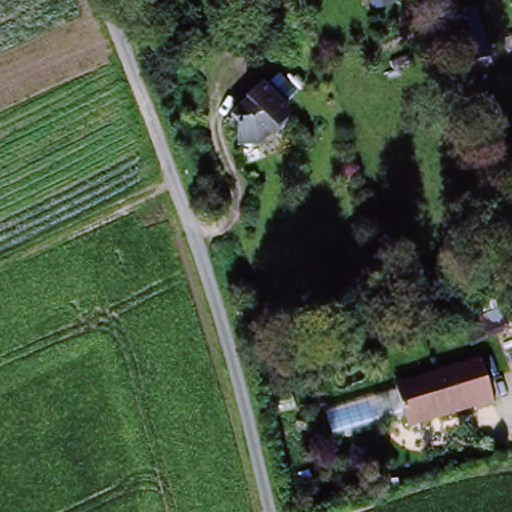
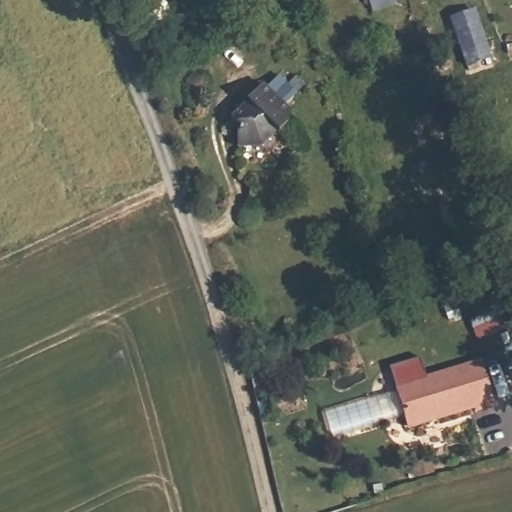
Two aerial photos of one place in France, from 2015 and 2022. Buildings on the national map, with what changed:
unchanged [(392,6),(370,14),(365,0),(390,0),(392,6)]
unchanged [(480,16),(497,62),(473,71),(456,24),(480,16)]
unchanged [(473,71),(444,82),(427,35),(456,24),(473,71)]
unchanged [(287,112),(284,126),(274,135),(270,135),(254,151),(235,148),(237,124),(230,118),(261,88),(287,112)]
unchanged [(482,362),(494,405),(472,413),(470,410),(404,429),(401,418),(393,389),(482,362)]
unchanged [(401,418),(329,439),(320,411),(393,389),(401,418)]

